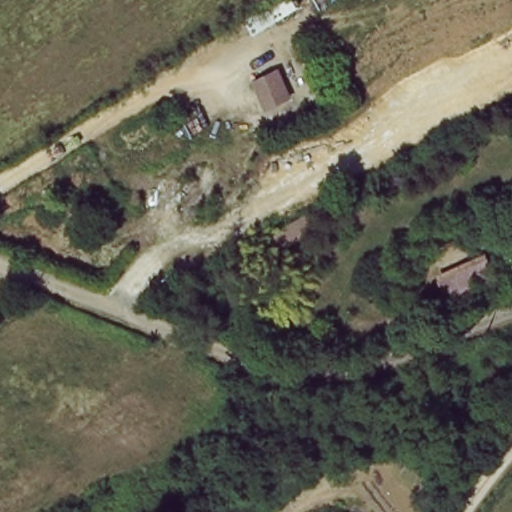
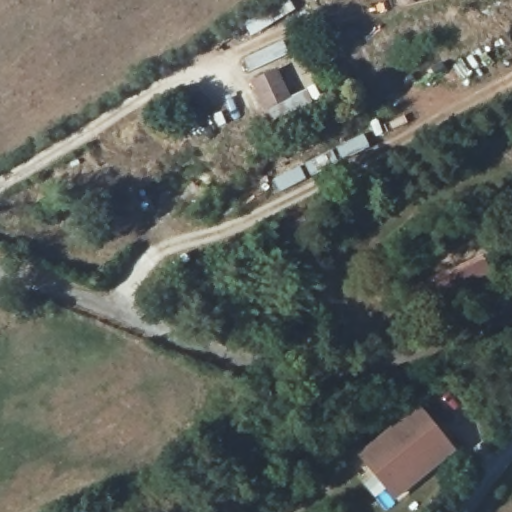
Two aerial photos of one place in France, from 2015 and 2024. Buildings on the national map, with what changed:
unchanged [(251,83),(282,67),(295,99),(265,114),(251,83)]
unchanged [(496,285),(448,307),(436,281),(489,260),(496,285)]
new [(395,483),(369,447),(429,402),(462,446),(416,480),(402,491),(395,483)]

